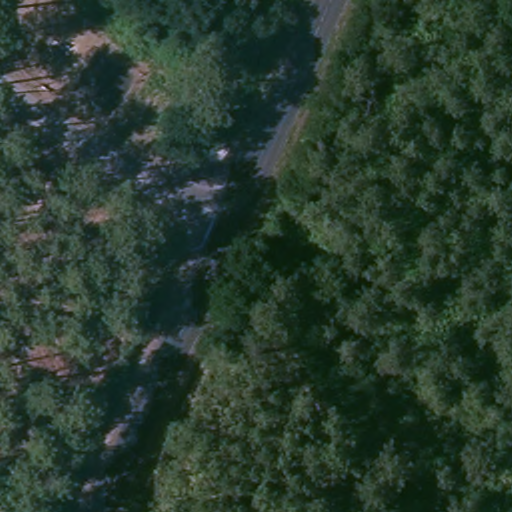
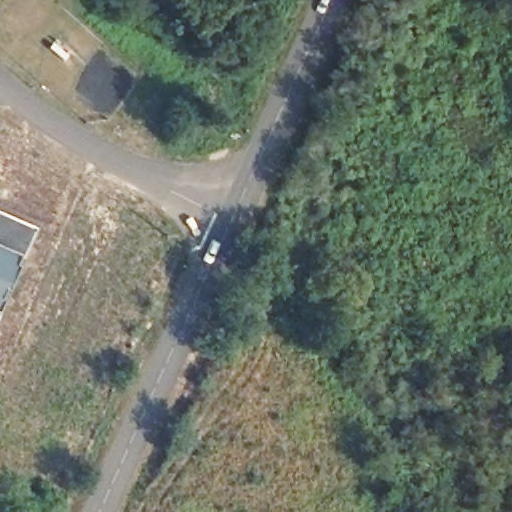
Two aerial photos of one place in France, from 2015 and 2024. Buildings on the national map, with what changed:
new [(5,207),(6,205),(48,225),(34,254),(30,252),(26,261),(30,262),(18,287),(15,286),(11,294),(14,296),(0,326),(0,205),(5,207)]

